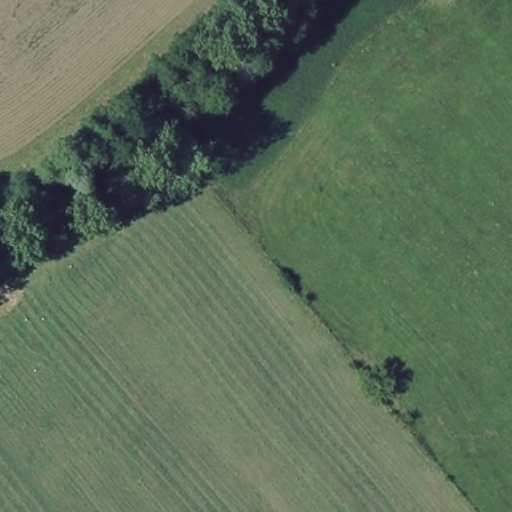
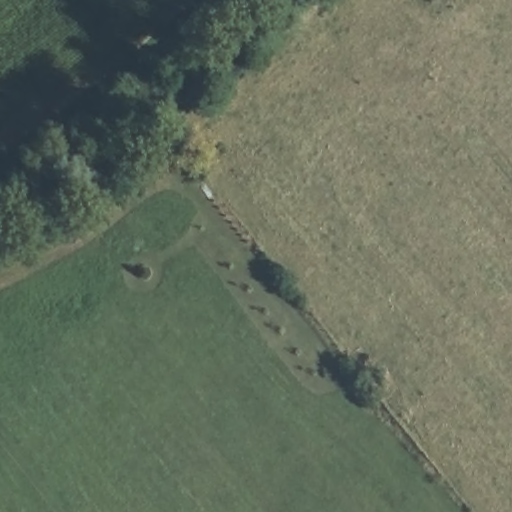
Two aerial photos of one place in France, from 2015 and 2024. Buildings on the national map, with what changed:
[]

